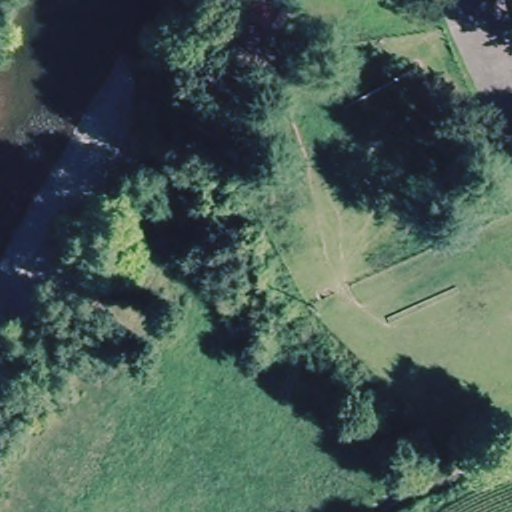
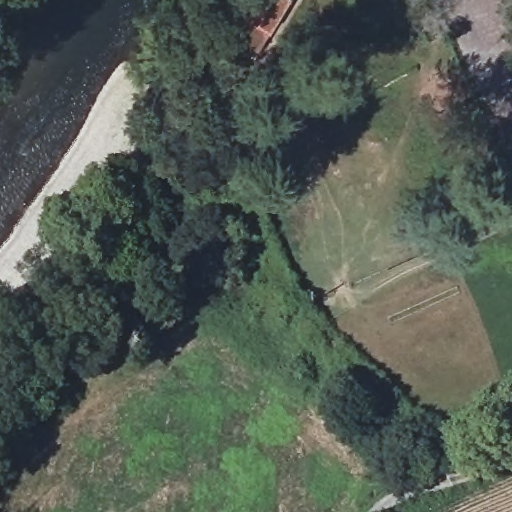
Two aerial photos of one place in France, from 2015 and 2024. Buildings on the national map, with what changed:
unchanged [(278,0),(266,17),(249,5),(252,0),(278,0)]

